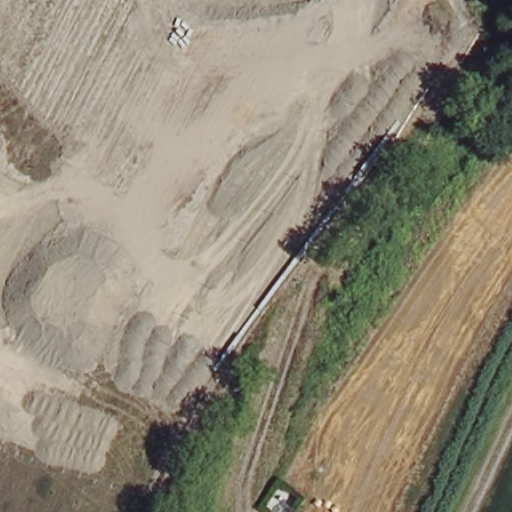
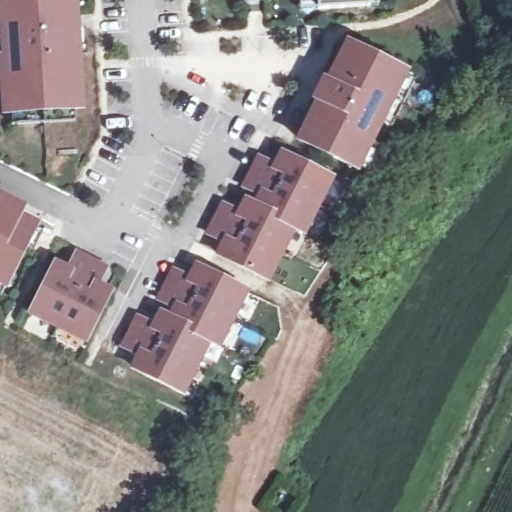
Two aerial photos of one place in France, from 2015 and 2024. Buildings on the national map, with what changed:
new [(0,56),(7,56),(7,43),(2,44),(0,4),(0,0),(74,0),(74,6),(75,27),(84,26),(85,52),(76,53),(85,118),(22,122),(11,123),(10,111),(3,112),(0,56)]
new [(298,0),(377,0),(377,5),(368,6),(316,9),(299,10),(298,0)]
new [(314,98),(312,98),(321,79),(323,80),(326,80),(345,42),(402,72),(355,167),(297,138),(316,100),(314,98)]
new [(413,77),(390,125),(378,120),(402,72),(413,77)]
new [(380,146),(365,173),(355,167),(368,140),(380,146)]
new [(258,157),(262,159),(275,165),(281,152),(330,177),(316,205),(250,172),(258,158),(258,157)]
new [(250,172),(316,205),(303,231),(293,227),(292,227),(292,226),(253,206),(253,205),(245,200),(255,204),(260,194),(244,186),(250,172)]
new [(0,198),(39,217),(5,284),(1,292),(0,291),(0,198)]
new [(222,205),(222,204),(239,212),(245,200),(253,205),(253,206),(292,226),(292,227),(293,227),(280,252),(215,219),(222,205)]
new [(215,219),(280,252),(266,279),(218,254),(225,241),(207,233),(215,219)]
new [(103,267),(95,283),(108,289),(84,338),(57,325),(30,311),(54,262),(67,268),(75,253),(90,260),(103,267)]
new [(172,271),(188,279),(195,265),(244,290),(230,317),(165,285),(172,271)]
new [(165,285),(230,317),(216,344),(207,339),(207,338),(168,318),(168,317),(174,306),(158,299),(165,285)]
new [(136,318),(152,326),(159,312),(168,317),(168,318),(207,338),(207,339),(195,364),(181,391),(131,367),(138,353),(122,345),(130,332),(136,318)]

